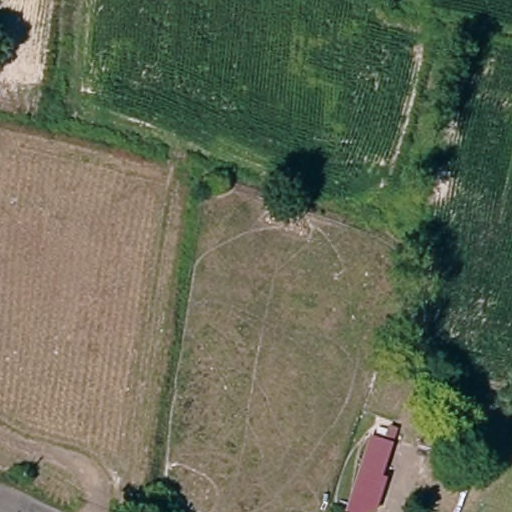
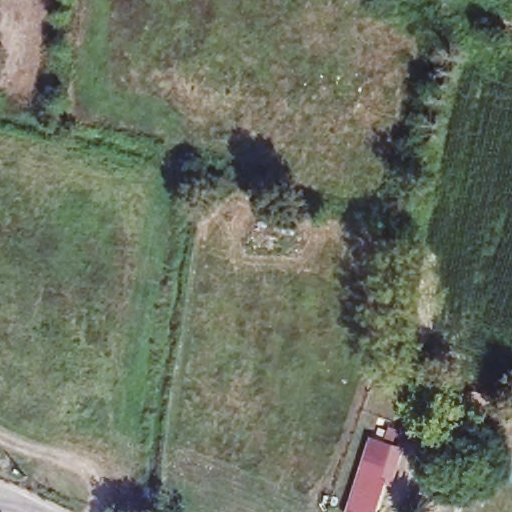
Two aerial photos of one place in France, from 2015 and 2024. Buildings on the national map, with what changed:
unchanged [(393,440),(369,509),(361,506),(359,512),(345,512),(343,511),(373,432),(393,440)]

